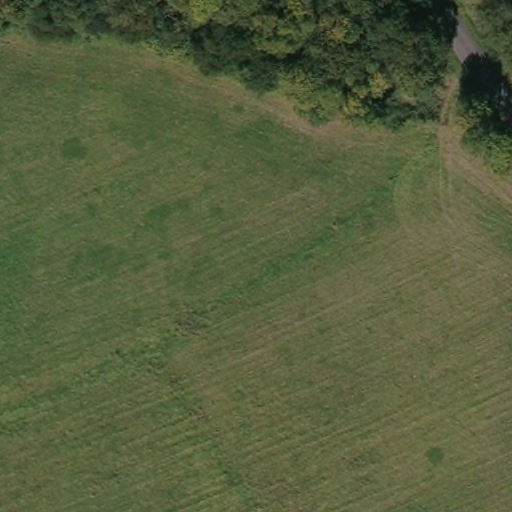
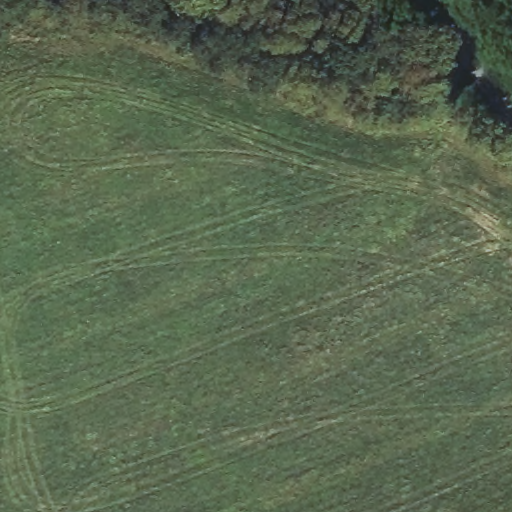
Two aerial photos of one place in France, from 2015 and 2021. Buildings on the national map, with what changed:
[]

